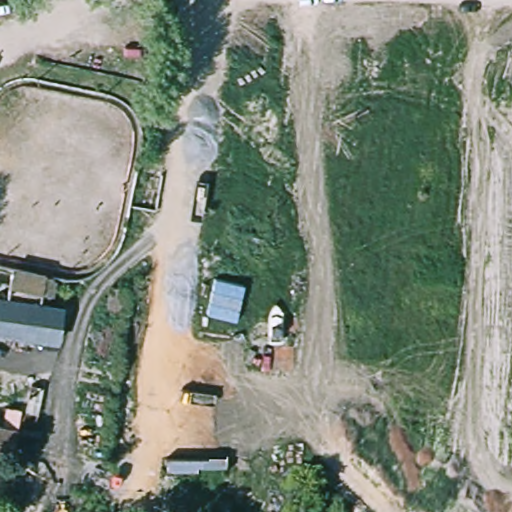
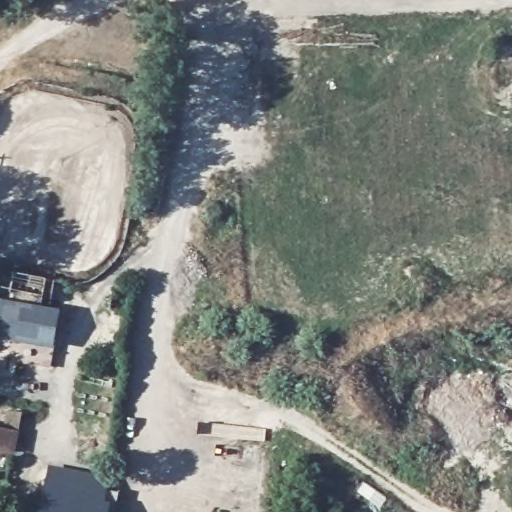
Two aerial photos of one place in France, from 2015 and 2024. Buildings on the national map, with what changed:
unchanged [(0,298),(0,296),(3,287),(14,288),(18,273),(52,280),(46,307),(0,298)]
unchanged [(130,313),(108,309),(111,291),(133,295),(130,313)]
unchanged [(63,347),(0,338),(0,298),(46,307),(68,312),(63,347)]
unchanged [(0,445),(0,428),(17,431),(14,447),(0,445)]
new [(109,476),(104,501),(111,502),(109,512),(39,512),(43,493),(51,465),(109,476)]

